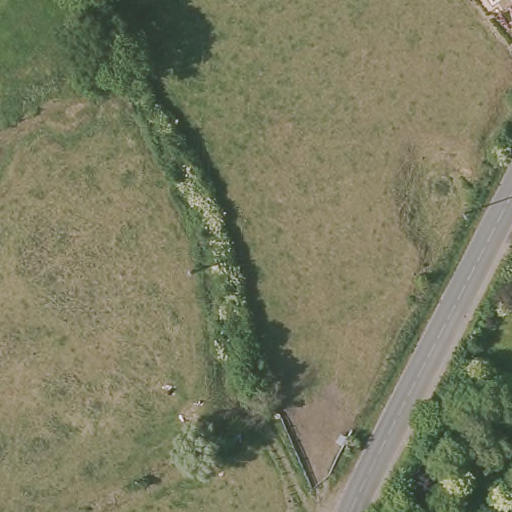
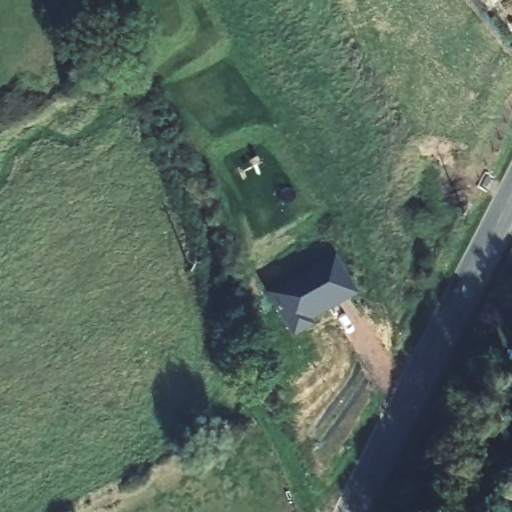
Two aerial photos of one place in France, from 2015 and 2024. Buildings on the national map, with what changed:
new [(359,297),(292,340),(266,294),(335,255),(359,297)]

